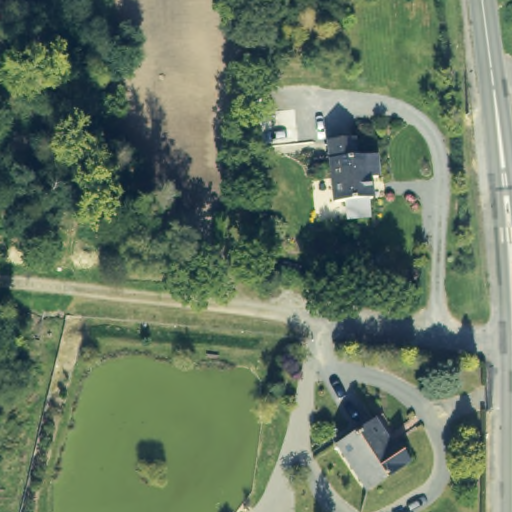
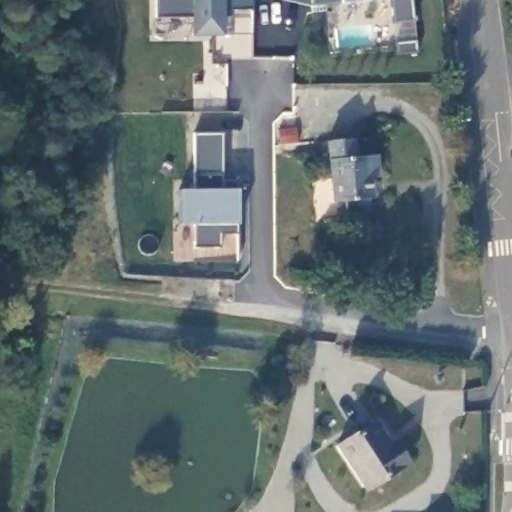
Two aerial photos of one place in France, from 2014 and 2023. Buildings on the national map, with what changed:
new [(223,9),(224,35),(190,36),(190,17),(155,17),(155,0),(251,0),(251,10),(223,9)]
new [(343,3),(311,5),(287,0),(374,0),(343,3)]
new [(392,24),(389,0),(410,0),(412,22),(392,24)]
new [(221,180),(235,180),(235,190),(236,226),(235,234),(217,235),(218,247),(194,247),(193,224),(177,225),(176,189),(195,190),(193,134),(221,134),(221,180)]
unchanged [(326,141),(350,139),(351,155),(370,154),(372,178),(368,179),(371,201),(367,205),(369,217),(347,219),(345,204),(333,204),(326,141)]
unchanged [(391,443),(396,440),(410,461),(368,491),(340,449),(377,422),(391,443)]

